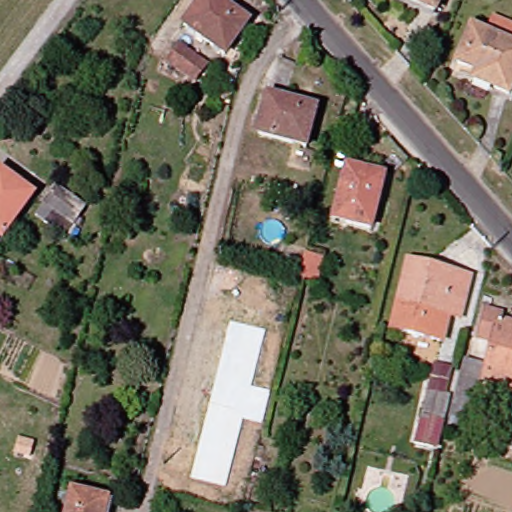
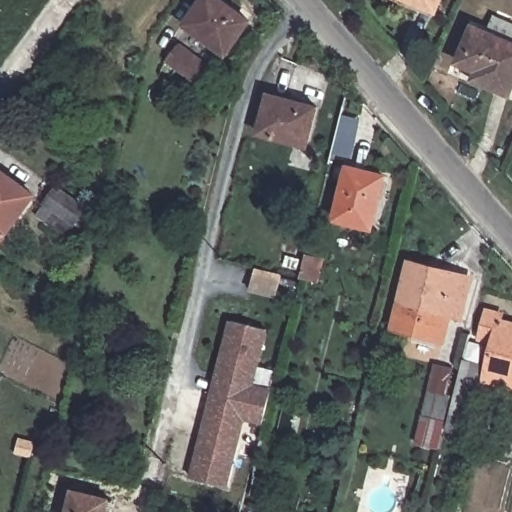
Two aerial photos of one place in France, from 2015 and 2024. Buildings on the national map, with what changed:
unchanged [(226,55),(184,24),(202,0),(219,0),(250,21),(226,55)]
unchanged [(409,0),(443,0),(438,12),(409,0)]
unchanged [(459,62),(473,27),(512,44),(512,96),(495,90),(474,80),(478,71),(459,62)]
unchanged [(199,84),(169,61),(179,46),(210,69),(199,84)]
unchanged [(316,108),(308,147),(259,133),(269,95),(316,108)]
unchanged [(269,157),(262,177),(242,170),(239,169),(247,148),(269,157)]
unchanged [(372,229),(335,220),(348,168),(385,177),(372,229)]
unchanged [(33,196),(2,239),(0,237),(0,172),(1,171),(33,196)]
unchanged [(74,225),(54,211),(45,222),(37,215),(58,188),(86,209),(74,225)]
unchanged [(472,279),(461,319),(450,316),(444,342),(393,329),(409,263),(472,279)]
new [(255,269),(279,276),(274,297),(249,290),(255,269)]
unchanged [(487,366),(494,341),(481,337),(488,310),(503,314),(501,321),(512,324),(512,388),(483,380),(487,366)]
new [(268,329),(255,384),(272,388),(264,424),(245,421),(230,486),(190,477),(228,320),(268,329)]
unchanged [(416,444),(429,392),(436,365),(453,369),(465,371),(468,361),(487,366),(483,380),(472,420),(442,412),(434,448),(416,444)]
unchanged [(501,419),(512,422),(512,450),(493,445),(501,419)]
unchanged [(31,458),(18,455),(21,441),(35,444),(31,458)]
unchanged [(69,512),(74,492),(109,501),(106,512),(69,512)]

